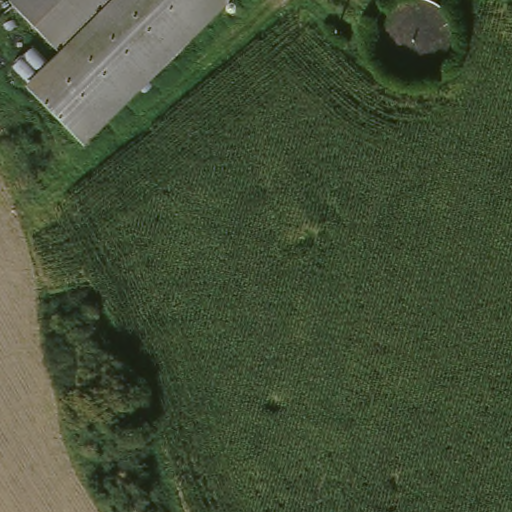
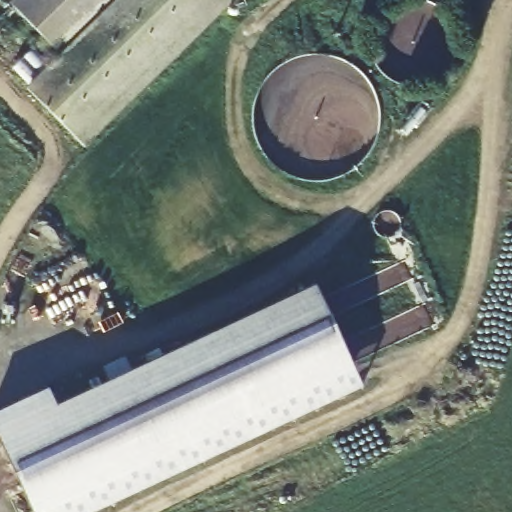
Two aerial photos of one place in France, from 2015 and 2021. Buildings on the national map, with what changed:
unchanged [(26,86),(61,51),(13,2),(15,0),(230,0),(82,144),(26,86)]
new [(63,409),(98,392),(95,385),(104,381),(108,388),(321,288),(369,389),(109,512),(38,512),(0,432),(0,417),(54,392),(63,409)]

